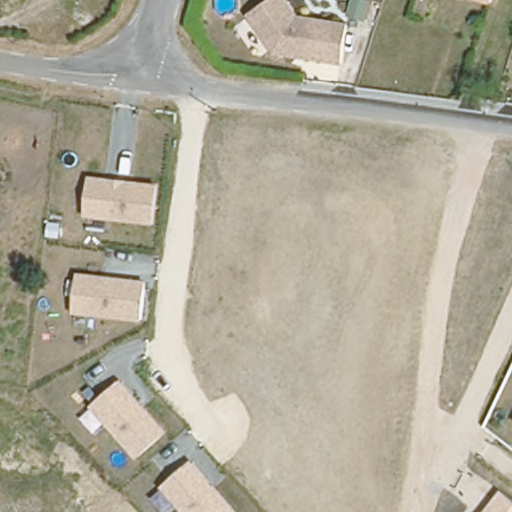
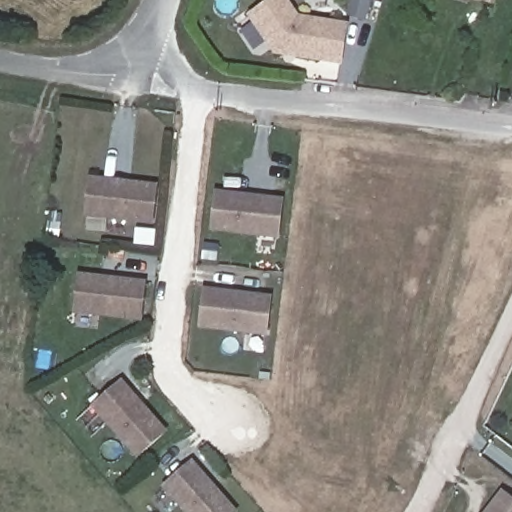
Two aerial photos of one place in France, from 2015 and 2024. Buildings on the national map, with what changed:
unchanged [(270,0),(287,0),(298,16),(346,25),(342,64),(277,55),(245,15),(270,0)]
unchanged [(487,1),(484,0),(487,0),(487,1)]
unchanged [(155,224),(109,220),(107,233),(86,231),(90,177),(160,185),(155,224)]
new [(210,231),(215,190),(285,197),(280,240),(210,231)]
unchanged [(144,322),(73,315),(77,273),(150,281),(144,322)]
new [(199,329),(203,288),(272,295),(268,336),(199,329)]
unchanged [(137,459),(92,405),(123,380),(170,432),(137,459)]
unchanged [(192,460),(238,512),(185,512),(162,486),(192,460)]
unchanged [(512,496),(512,512),(485,512),(502,489),(512,496)]

